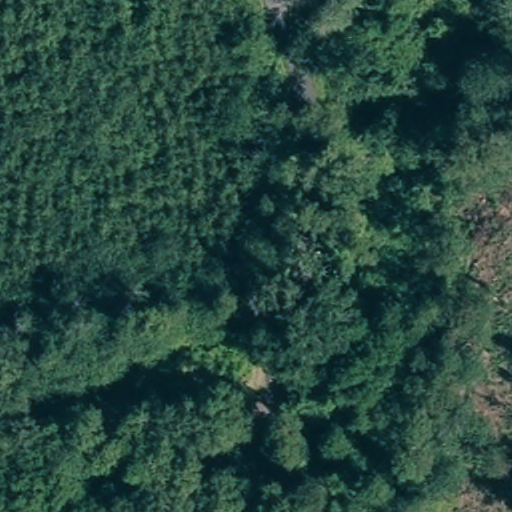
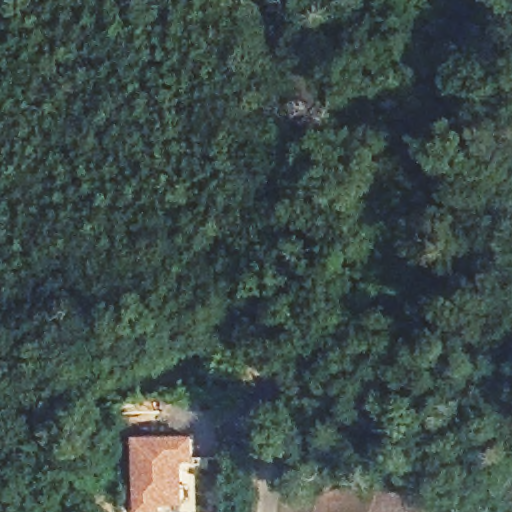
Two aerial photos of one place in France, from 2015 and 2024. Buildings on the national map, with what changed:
new [(133,435),(196,434),(196,463),(185,463),(183,512),(132,512),(133,435)]

